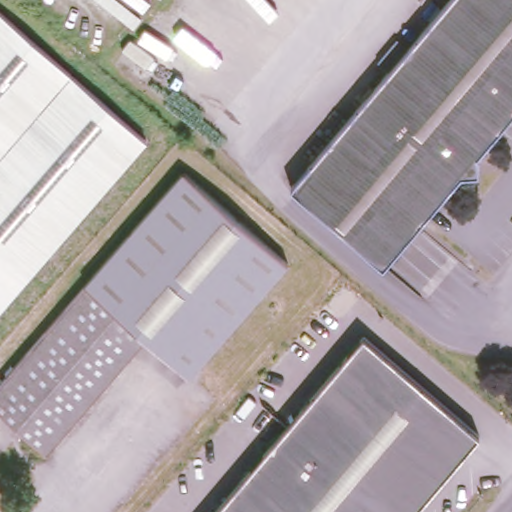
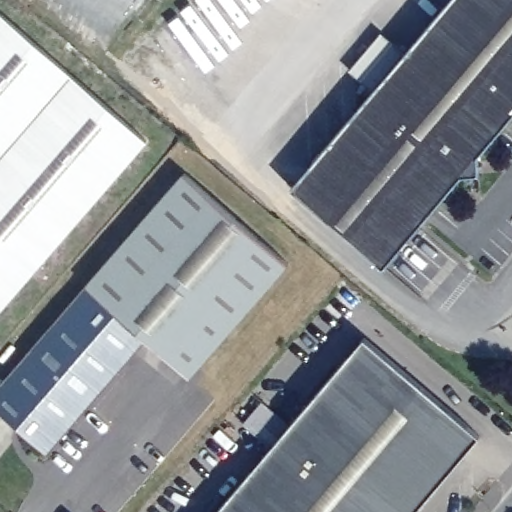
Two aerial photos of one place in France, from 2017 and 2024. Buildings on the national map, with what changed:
unchanged [(478,170),(461,171),(384,262),(291,185),(447,0),(512,0),(512,110),(476,152),(478,170)]
unchanged [(147,138),(0,307),(0,6),(147,138)]
unchanged [(180,176),(281,265),(183,374),(143,342),(151,332),(88,280),(180,176)]
unchanged [(0,403),(0,384),(88,280),(151,332),(143,342),(52,447),(0,403)]
unchanged [(482,435),(417,512),(217,512),(365,337),(482,435)]

